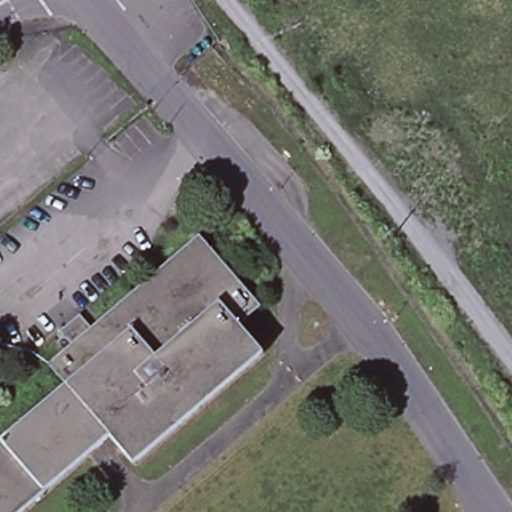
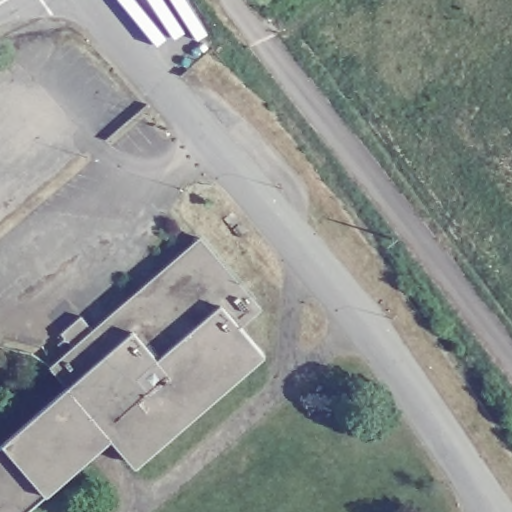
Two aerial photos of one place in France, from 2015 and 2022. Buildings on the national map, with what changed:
unchanged [(72,346),(60,332),(80,315),(92,329),(200,236),(260,306),(238,325),(263,353),(135,463),(110,435),(67,386),(50,365),(72,346)]
unchanged [(21,512),(0,512),(0,444),(3,441),(67,386),(110,435),(21,512)]

